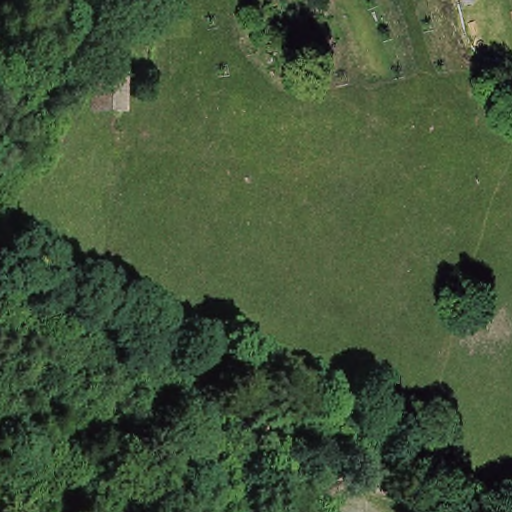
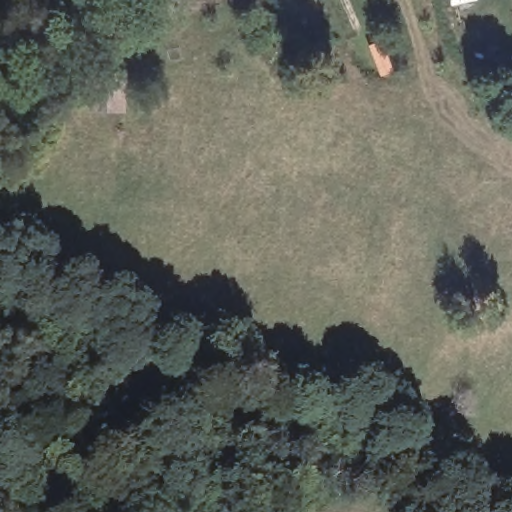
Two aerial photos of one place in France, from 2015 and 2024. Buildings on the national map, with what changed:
unchanged [(104,79),(132,79),(131,117),(104,116),(104,79)]

